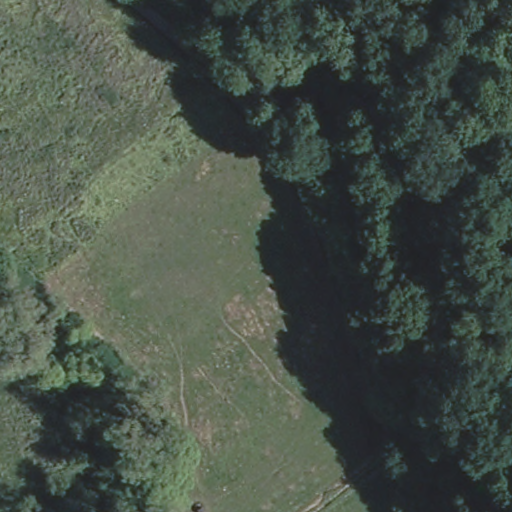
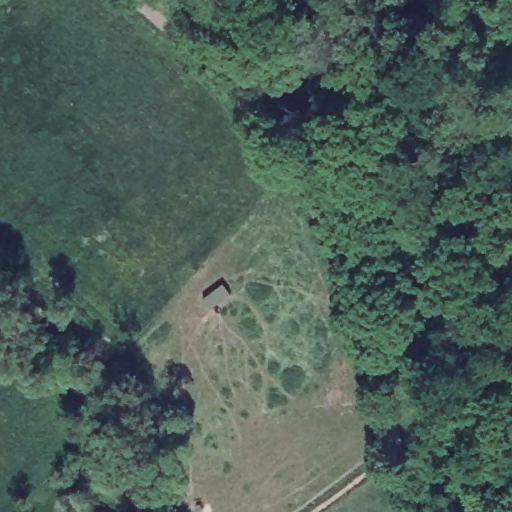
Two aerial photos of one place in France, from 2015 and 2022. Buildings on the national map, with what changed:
[]

